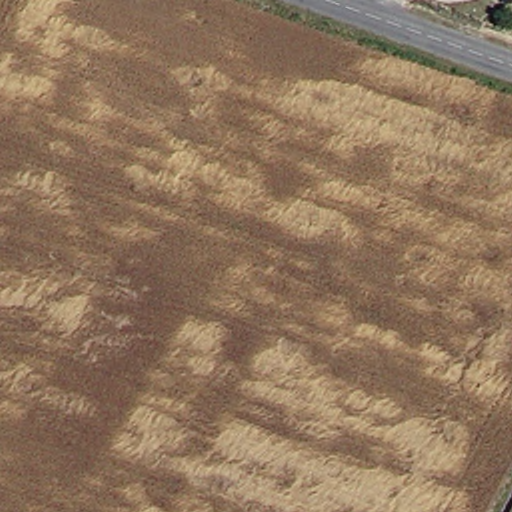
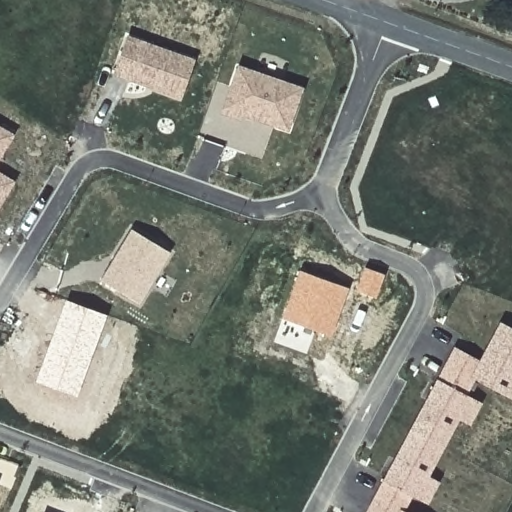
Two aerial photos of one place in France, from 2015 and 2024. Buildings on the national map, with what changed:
new [(181,98),(114,74),(126,34),(194,58),(181,98)]
new [(289,132),(244,116),(242,120),(221,112),(237,64),(303,87),(289,132)]
new [(0,126),(14,135),(0,157),(0,126)]
new [(0,207),(0,172),(16,182),(0,207)]
new [(139,304),(99,280),(131,228),(170,253),(139,304)]
new [(377,297),(356,290),(363,266),(385,273),(377,297)]
new [(333,335),(282,317),(299,270),(349,287),(333,335)]
new [(77,396),(35,381),(65,299),(107,315),(77,396)]
new [(474,378),(467,393),(482,402),(470,425),(459,419),(429,476),(440,482),(428,504),(412,495),(406,510),(409,512),(364,512),(453,346),(479,360),(500,321),(512,328),(512,398),(474,378)]

